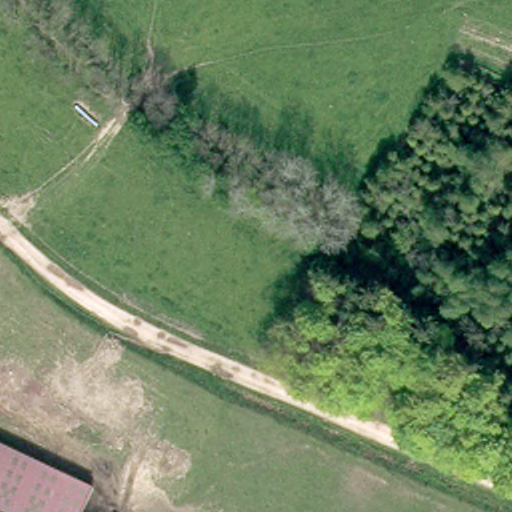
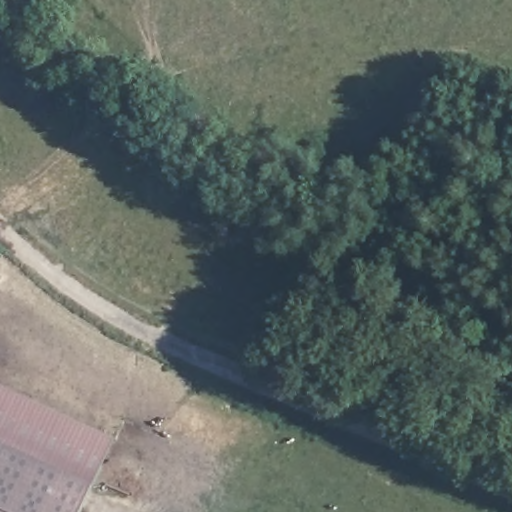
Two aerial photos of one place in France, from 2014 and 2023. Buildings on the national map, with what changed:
new [(89,483),(0,441),(0,384),(113,437),(89,483)]
unchanged [(76,512),(0,512),(0,441),(89,483),(76,512)]

